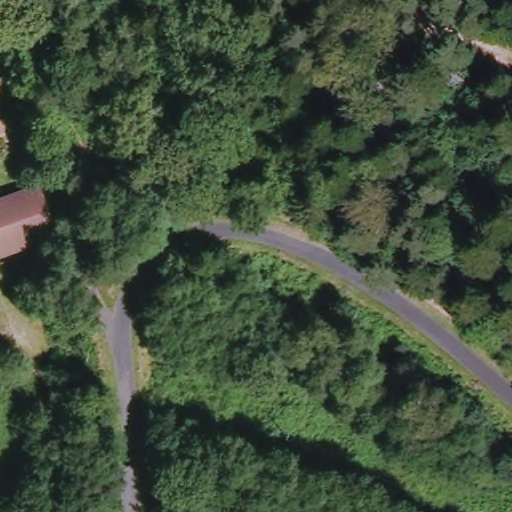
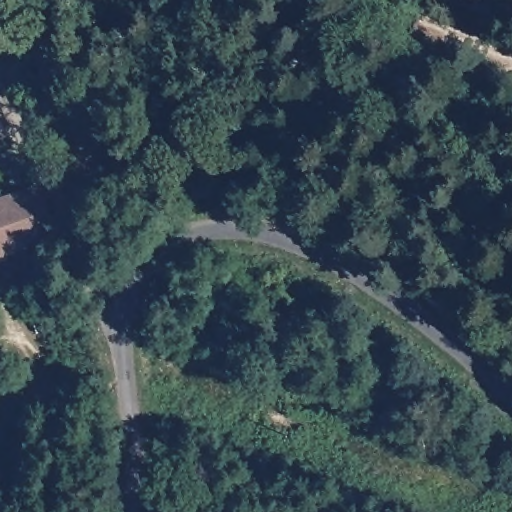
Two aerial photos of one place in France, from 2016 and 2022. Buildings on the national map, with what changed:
unchanged [(0,136),(0,130),(3,135),(0,136)]
unchanged [(47,247),(20,257),(4,197),(30,191),(47,247)]
unchanged [(0,198),(4,197),(20,257),(0,262),(0,198)]

